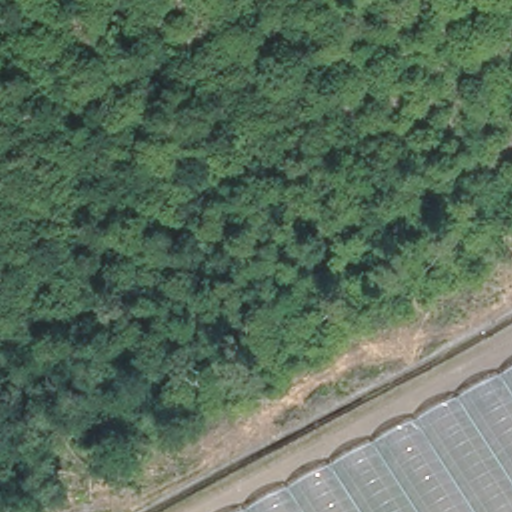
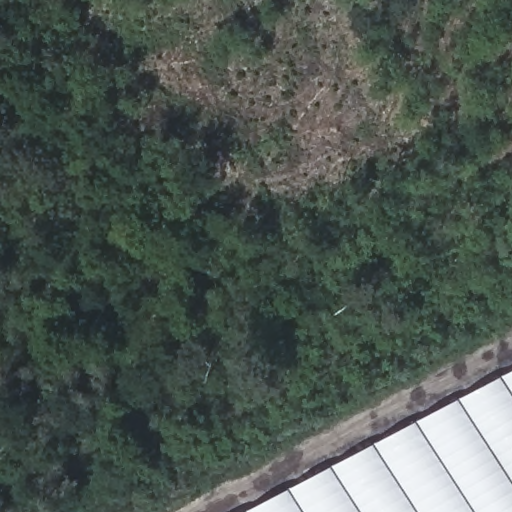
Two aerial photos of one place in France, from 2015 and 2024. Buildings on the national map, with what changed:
unchanged [(512,372),(512,512),(246,512),(512,372)]

